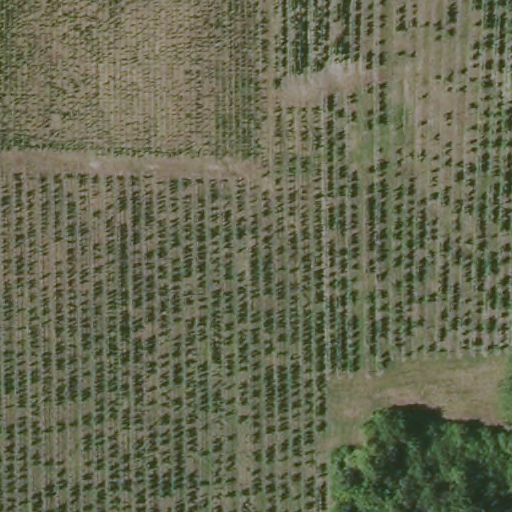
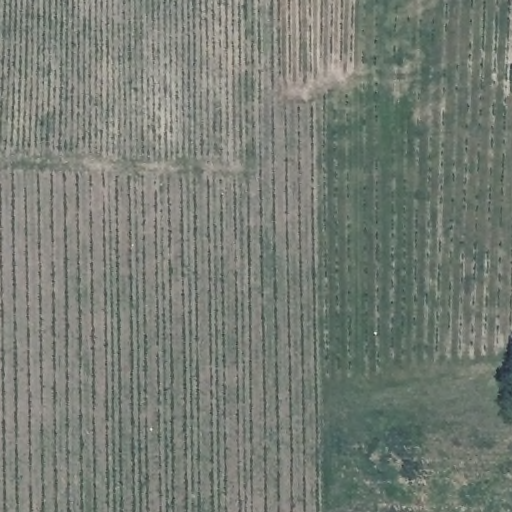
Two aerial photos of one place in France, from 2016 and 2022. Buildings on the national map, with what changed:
unchanged [(512,75),(512,99),(510,99),(512,75)]

